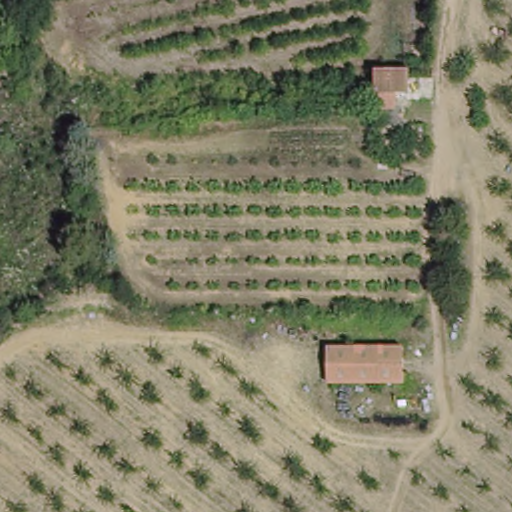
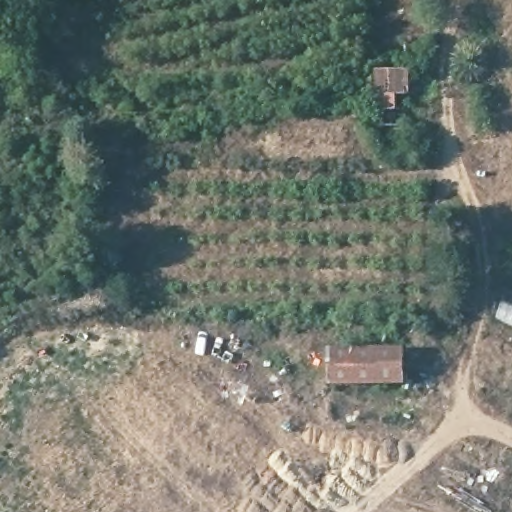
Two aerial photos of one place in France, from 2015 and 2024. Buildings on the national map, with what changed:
unchanged [(380,79),(413,78),(412,104),(380,105),(380,79)]
unchanged [(408,350),(406,381),(327,381),(327,348),(408,350)]

